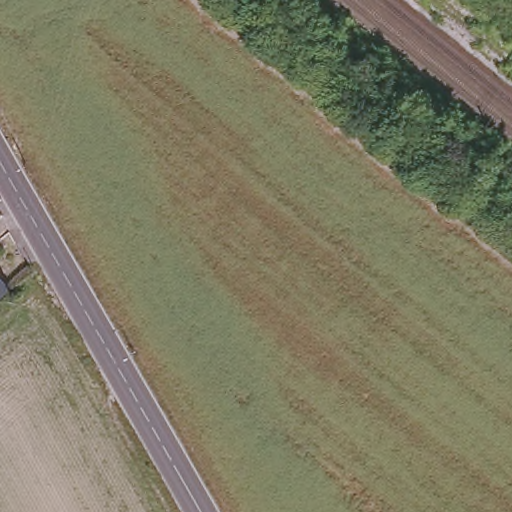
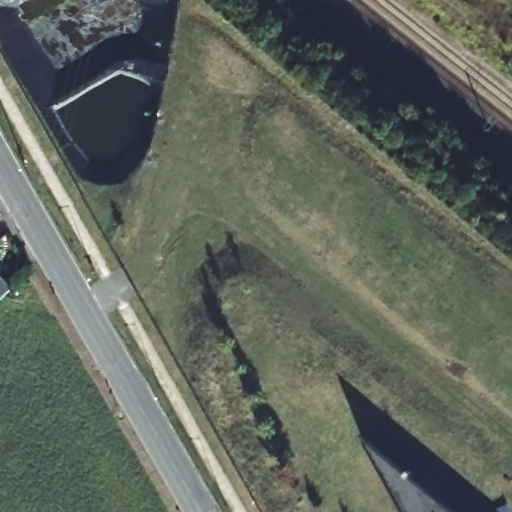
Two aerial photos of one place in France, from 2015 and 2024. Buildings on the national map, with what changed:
unchanged [(0,278),(7,286),(0,293),(0,278)]
new [(455,512),(404,512),(361,435),(455,512)]

